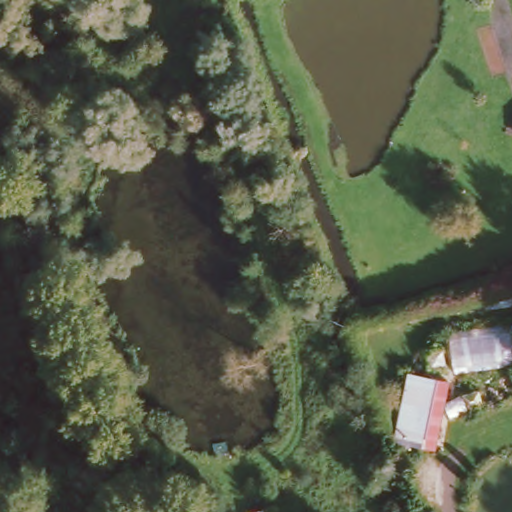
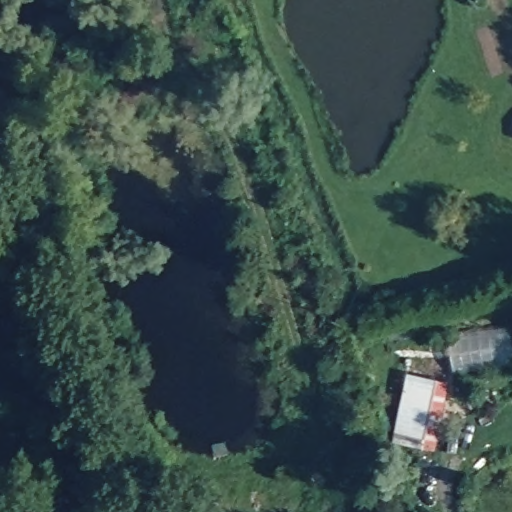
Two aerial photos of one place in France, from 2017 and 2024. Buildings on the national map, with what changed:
unchanged [(503,326),(505,367),(448,371),(446,331),(503,326)]
unchanged [(446,376),(431,454),(383,445),(406,371),(446,376)]

